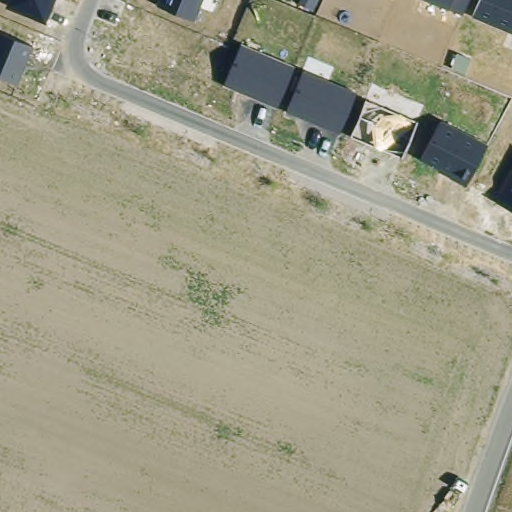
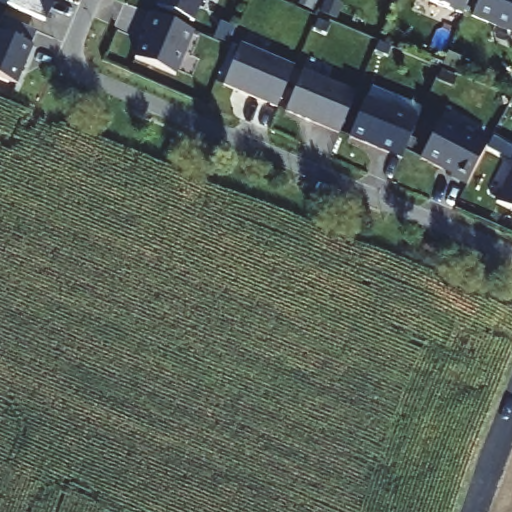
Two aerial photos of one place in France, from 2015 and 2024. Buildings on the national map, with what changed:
unchanged [(9,0),(54,0),(46,23),(6,7),(9,0)]
unchanged [(160,0),(202,0),(194,19),(158,5),(160,0)]
unchanged [(462,14),(425,0),(467,0),(462,14)]
unchanged [(472,17),(479,0),(512,0),(512,34),(472,17)]
new [(194,32),(177,75),(134,57),(146,31),(141,29),(148,13),(194,32)]
unchanged [(18,84),(0,76),(0,36),(31,47),(18,84)]
unchanged [(294,65),(278,108),(223,85),(241,44),(294,65)]
unchanged [(354,94),(339,133),(287,112),(303,71),(354,94)]
unchanged [(418,121),(403,158),(350,136),(365,99),(418,121)]
unchanged [(489,144),(466,185),(422,158),(442,122),(489,144)]
unchanged [(512,169),(512,211),(495,202),(512,169)]

